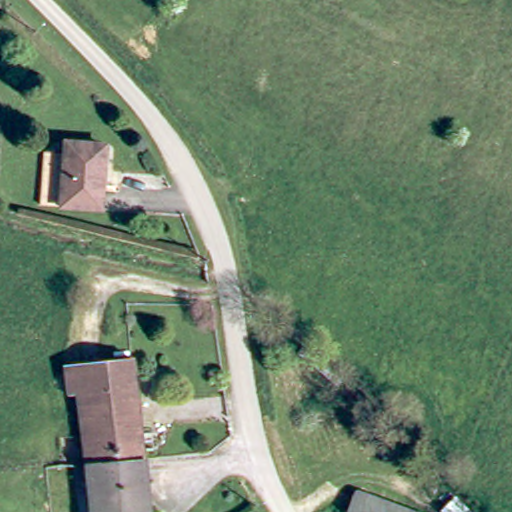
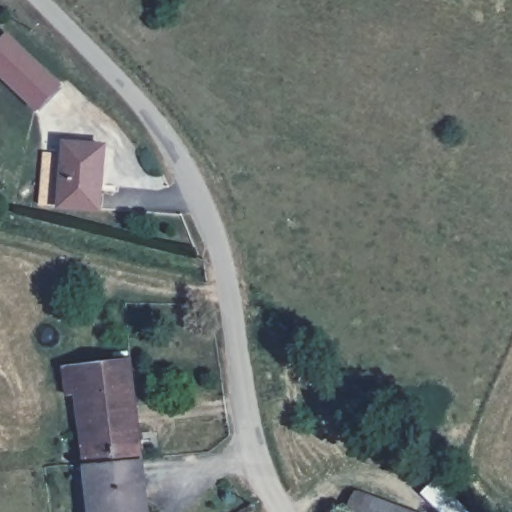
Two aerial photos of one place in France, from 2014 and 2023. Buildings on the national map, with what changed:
new [(37,113),(0,78),(0,39),(8,31),(63,85),(37,113)]
unchanged [(62,209),(63,142),(110,144),(102,210),(62,209)]
unchanged [(76,362),(145,356),(152,502),(91,509),(76,362)]
unchanged [(352,512),(361,490),(397,504),(417,511),(418,512),(352,512)]
unchanged [(91,512),(91,509),(152,502),(152,512),(91,512)]

